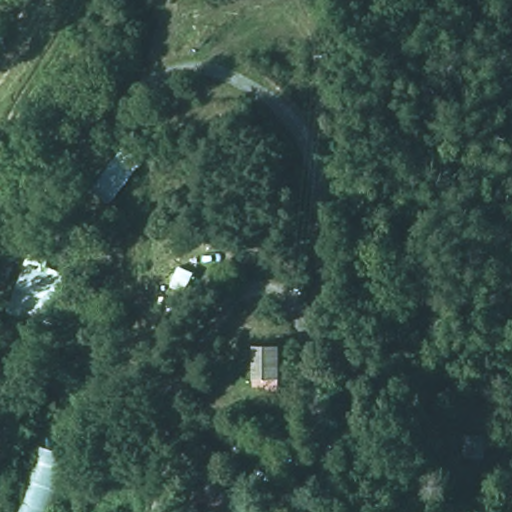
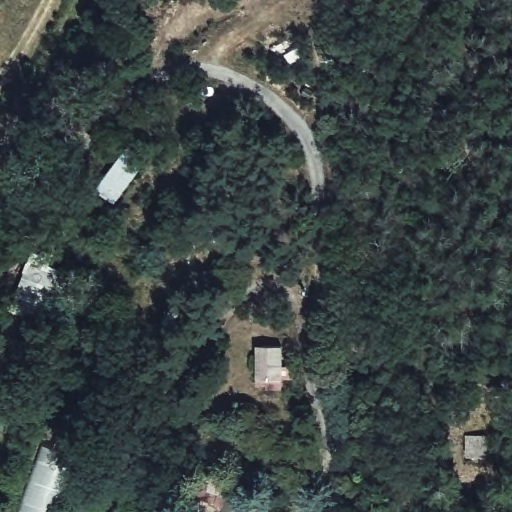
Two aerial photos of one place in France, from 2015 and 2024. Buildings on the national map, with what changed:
unchanged [(95,187),(131,137),(154,154),(116,202),(95,187)]
unchanged [(190,289),(174,281),(186,259),(205,270),(190,289)]
unchanged [(257,377),(257,343),(287,343),(288,378),(257,377)]
unchanged [(467,433),(492,432),(493,457),(467,458),(467,433)]

